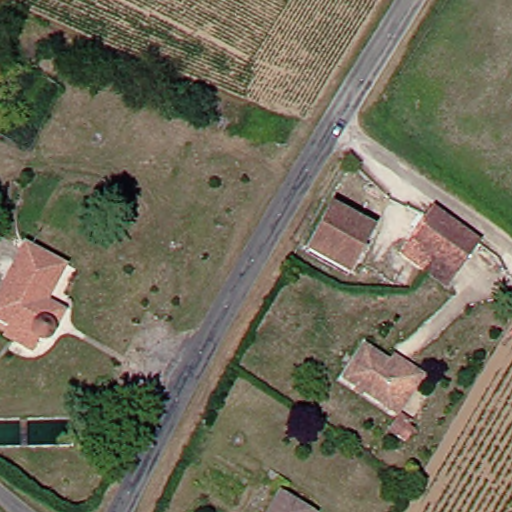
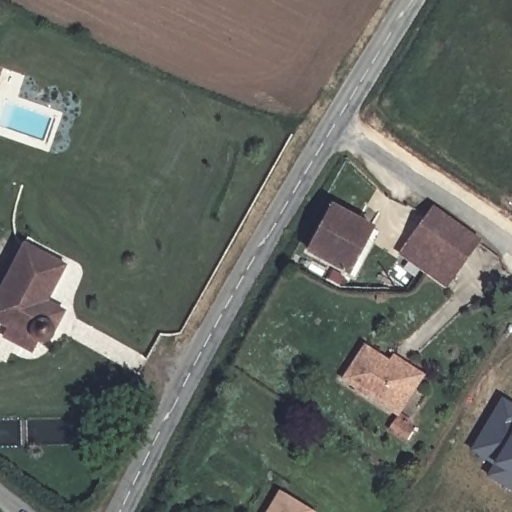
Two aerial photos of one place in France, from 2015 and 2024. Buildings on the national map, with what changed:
unchanged [(366,233),(341,277),(300,252),(326,208),(366,233)]
unchanged [(452,224),(426,265),(406,251),(433,211),(452,224)]
unchanged [(426,265),(452,224),(474,241),(440,290),(419,276),(426,265)]
unchanged [(3,330),(0,328),(0,288),(20,246),(58,266),(40,306),(59,315),(38,350),(30,348),(24,360),(16,356),(0,348),(0,337),(3,330)]
unchanged [(421,376),(395,414),(388,409),(341,378),(363,343),(388,362),(392,356),(421,376)]
new [(492,465),(469,450),(499,396),(512,403),(512,491),(486,475),(492,465)]
unchanged [(409,429),(402,439),(385,428),(392,417),(409,429)]
unchanged [(311,512),(264,512),(277,492),(311,512)]

